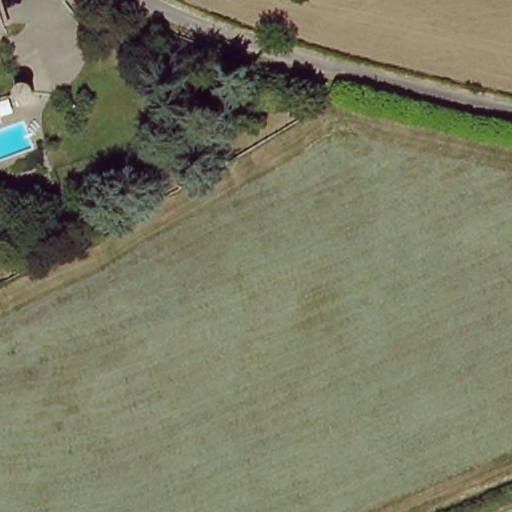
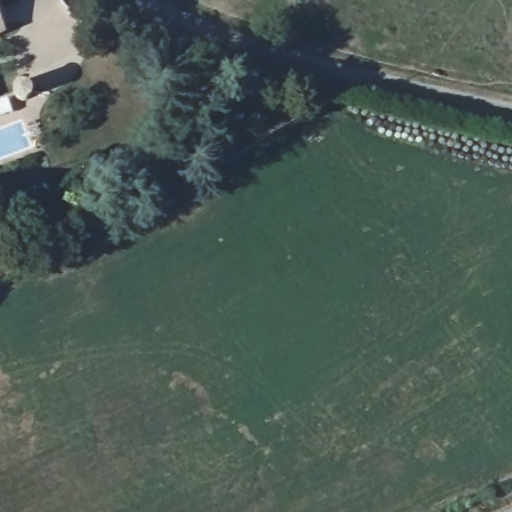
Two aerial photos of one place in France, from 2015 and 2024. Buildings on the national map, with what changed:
unchanged [(0,37),(0,26),(3,36),(0,37)]
unchanged [(27,77),(33,91),(26,94),(20,91),(27,77)]

